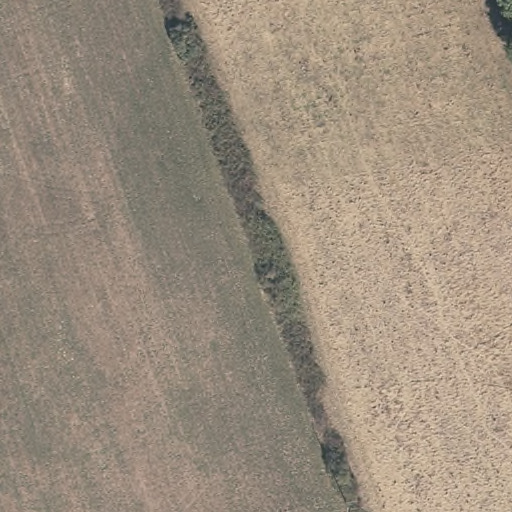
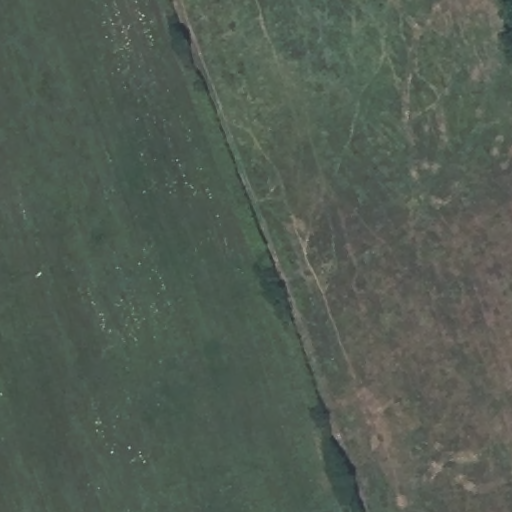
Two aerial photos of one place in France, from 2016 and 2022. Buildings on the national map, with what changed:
[]

